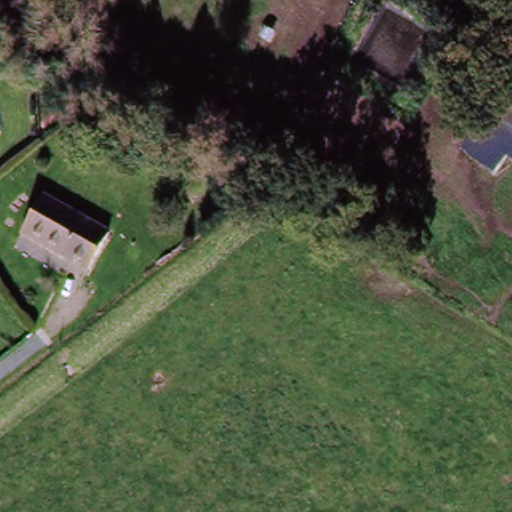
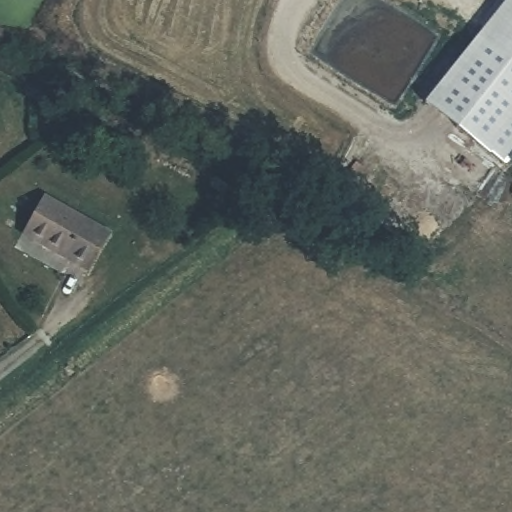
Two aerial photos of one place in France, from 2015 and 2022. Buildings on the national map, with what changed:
new [(424,102),(506,0),(512,0),(512,99),(498,119),(512,132),(512,155),(511,156),(504,165),(424,102)]
unchanged [(512,99),(512,132),(498,119),(512,99)]
unchanged [(512,155),(512,157),(511,156),(512,155)]
unchanged [(116,235),(95,273),(18,230),(41,191),(116,235)]

